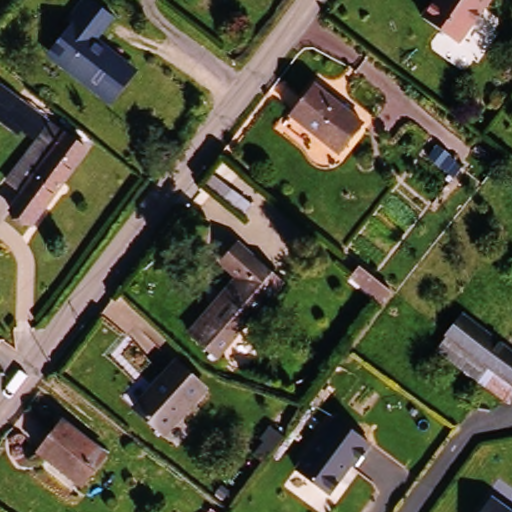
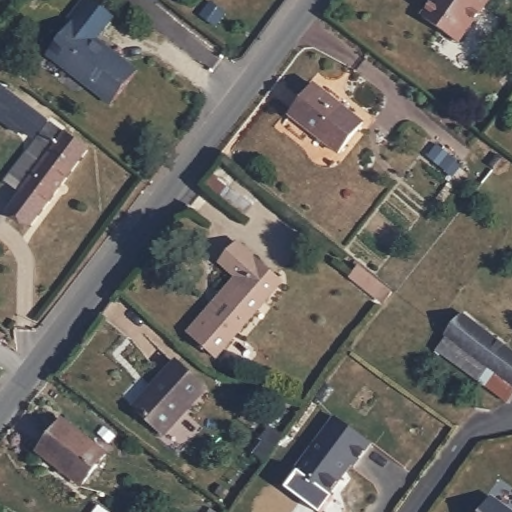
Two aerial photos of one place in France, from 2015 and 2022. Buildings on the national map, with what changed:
unchanged [(425,20),(439,0),(494,0),(460,46),(425,20)]
unchanged [(87,91),(66,75),(47,61),(50,57),(70,31),(65,27),(84,2),(114,22),(97,45),(113,57),(139,76),(136,80),(117,106),(114,110),(87,91)]
unchanged [(359,127),(335,155),(287,117),(310,87),(359,127)]
unchanged [(34,112),(47,122),(34,141),(20,131),(34,112)]
unchanged [(87,152),(31,227),(11,212),(24,195),(7,183),(50,125),(87,152)]
unchanged [(224,197),(232,186),(253,202),(245,212),(224,197)]
unchanged [(239,246),(282,285),(217,358),(190,335),(205,317),(238,279),(222,263),(239,246)]
unchanged [(392,290),(385,299),(353,274),(360,264),(392,290)]
unchanged [(511,390),(500,402),(433,353),(443,340),(440,337),(442,336),(458,316),(512,357),(512,391),(511,390)]
unchanged [(206,391),(165,435),(135,408),(176,362),(206,391)]
unchanged [(367,446),(350,468),(348,467),(326,496),(292,472),(332,420),(367,446)]
unchanged [(107,456),(82,487),(39,452),(62,422),(107,456)]
unchanged [(285,432),(265,458),(255,451),(264,438),(260,435),(270,422),(285,432)]
unchanged [(509,512),(482,512),(492,499),(509,512)]

